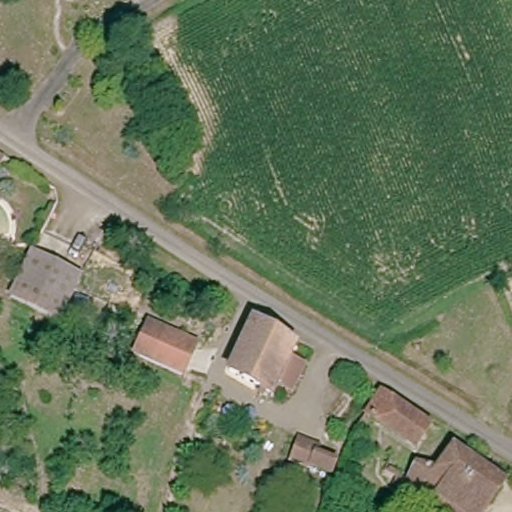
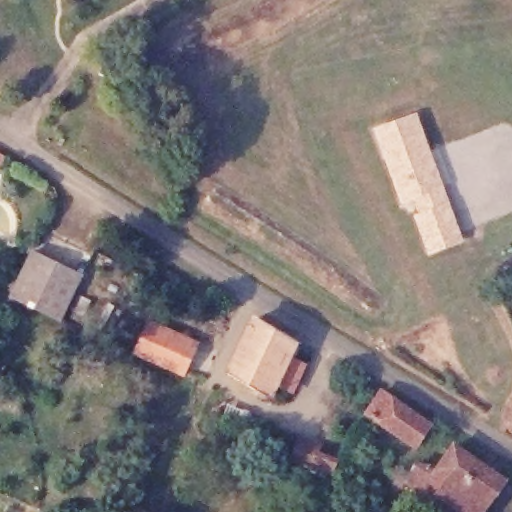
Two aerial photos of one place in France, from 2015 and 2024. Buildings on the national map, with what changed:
new [(464,241),(429,255),(415,215),(420,212),(415,200),(401,204),(374,128),(417,112),(464,241)]
unchanged [(3,170),(0,169),(0,157),(7,160),(3,170)]
unchanged [(31,251),(80,270),(61,317),(13,298),(31,251)]
unchanged [(146,322),(197,341),(183,378),(131,358),(146,322)]
unchanged [(273,397),(229,371),(259,322),(302,348),(295,360),(307,368),(293,390),(281,383),(273,397)]
unchanged [(435,422),(417,450),(369,420),(385,391),(435,422)]
unchanged [(407,486),(415,465),(442,476),(457,452),(504,482),(487,512),(455,512),(429,496),(407,486)]

